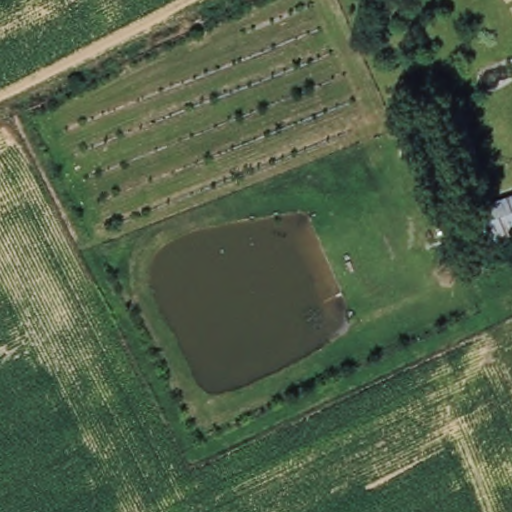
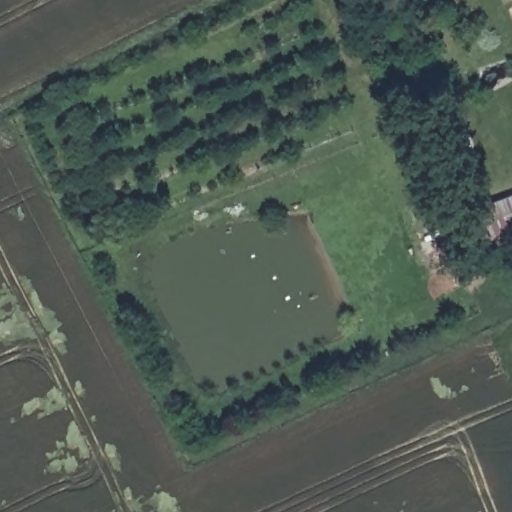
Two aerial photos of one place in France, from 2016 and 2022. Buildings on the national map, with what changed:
unchanged [(512,203),(512,245),(470,261),(456,225),(512,203)]

